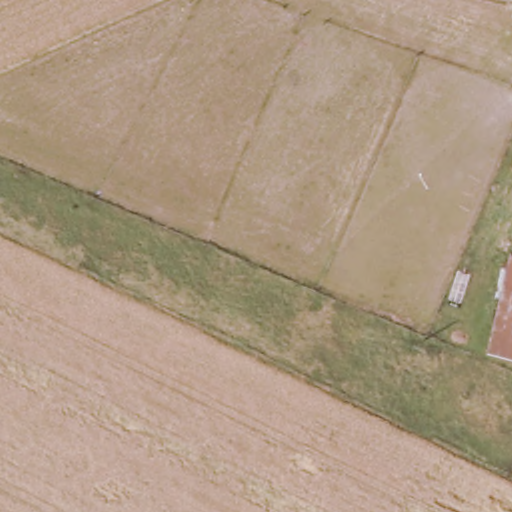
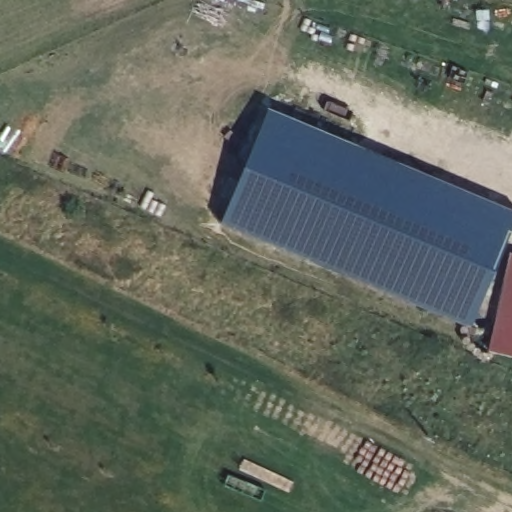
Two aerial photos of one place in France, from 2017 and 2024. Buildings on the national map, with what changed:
new [(268,107),(512,209),(512,228),(471,326),(221,222),(268,107)]
unchanged [(512,251),(512,356),(490,348),(512,251)]

